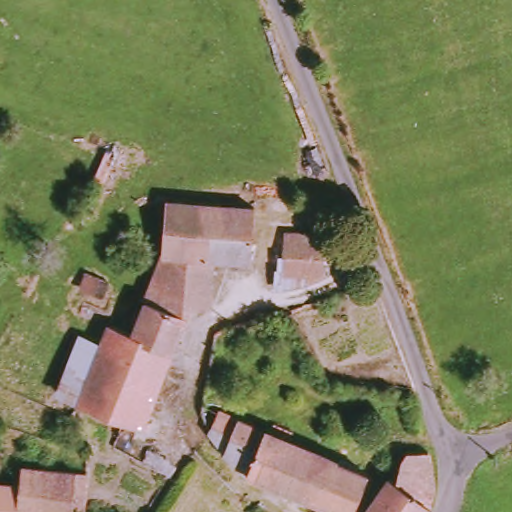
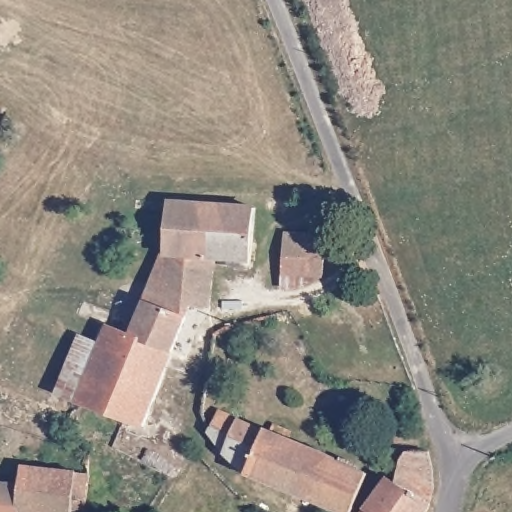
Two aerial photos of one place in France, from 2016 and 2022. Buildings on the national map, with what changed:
unchanged [(107,349),(114,331),(135,339),(140,326),(168,253),(173,203),(260,210),(256,270),(240,269),(240,260),(221,258),(212,307),(197,305),(164,394),(150,430),(84,405),(107,349)]
unchanged [(335,275),(327,275),(325,286),(280,294),(279,270),(283,270),(285,244),(334,237),(335,275)]
unchanged [(66,398),(87,341),(107,349),(84,405),(66,398)]
unchanged [(277,434),(280,426),(295,433),(292,440),(342,461),(372,476),(361,504),(356,512),(338,512),(247,473),(214,435),(227,412),(277,434)]
unchanged [(438,483),(434,508),(431,512),(371,512),(372,511),(392,479),(400,485),(406,458),(412,453),(433,453),(438,483)]
unchanged [(30,492),(34,473),(82,481),(78,512),(0,512),(0,488),(30,492)]

